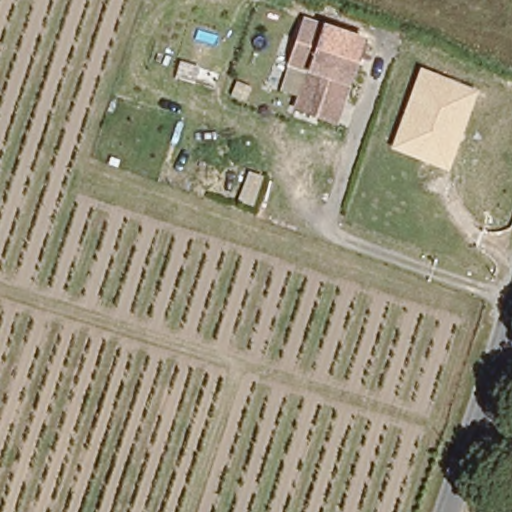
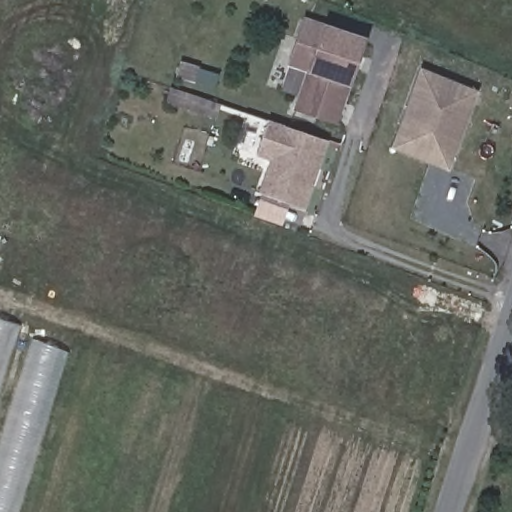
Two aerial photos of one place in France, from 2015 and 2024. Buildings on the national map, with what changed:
unchanged [(294,110),(299,96),(282,90),(290,67),(287,67),(303,17),(365,38),(338,124),(294,110)]
unchanged [(421,67),(478,91),(447,170),(392,148),(421,67)]
new [(268,120),(330,140),(306,208),(259,193),(268,160),(257,156),(268,120)]
new [(19,324),(17,334),(66,351),(17,512),(0,512),(0,319),(19,324)]

